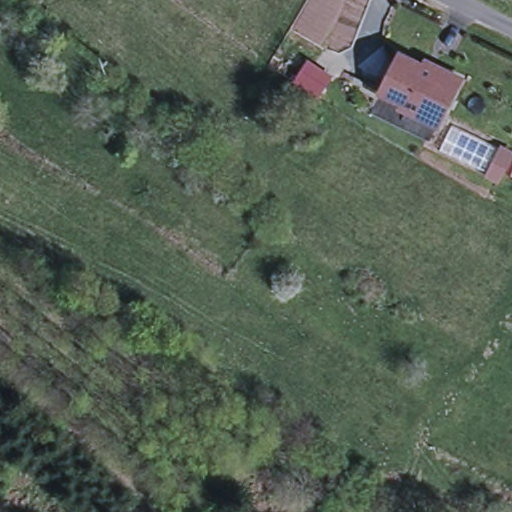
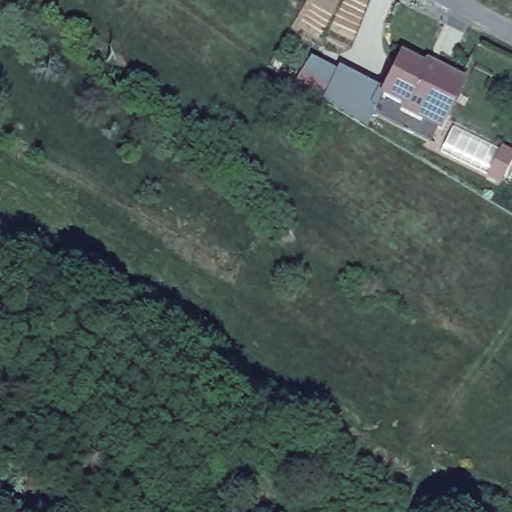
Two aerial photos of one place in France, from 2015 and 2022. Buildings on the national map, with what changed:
unchanged [(401,54),(439,73),(441,69),(460,79),(440,121),(382,92),(401,54)]
new [(336,70),(341,65),(378,85),(374,100),(378,102),(368,125),(324,102),(327,93),(298,78),(312,55),(336,70)]

